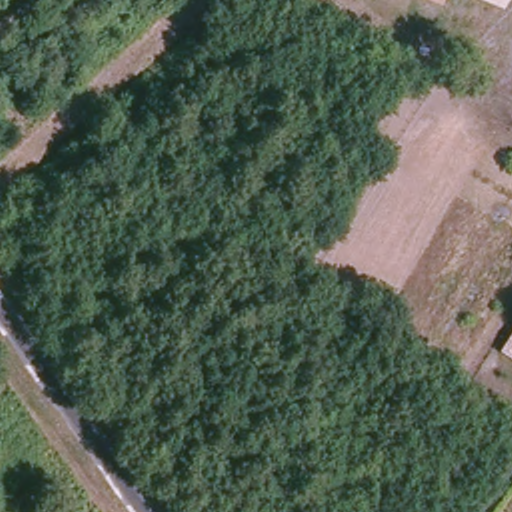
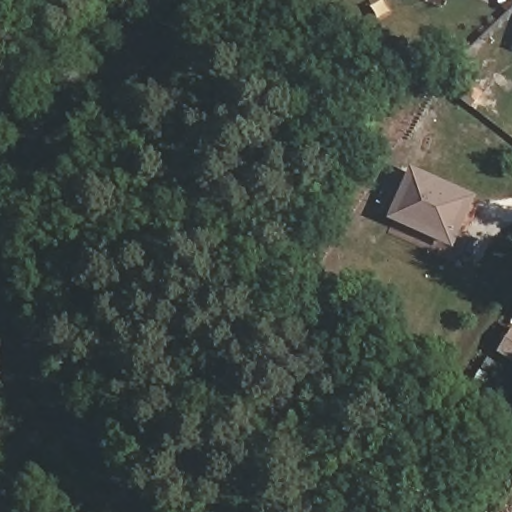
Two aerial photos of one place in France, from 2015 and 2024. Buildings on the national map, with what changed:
demolished [(325,4),(321,10),(311,6),(316,0),(338,0),(333,8),(325,4)]
demolished [(490,87),(465,75),(483,34),(508,45),(490,87)]
new [(390,219),(412,169),(478,198),(455,248),(390,219)]
unchanged [(512,333),(512,359),(501,353),(512,333)]

